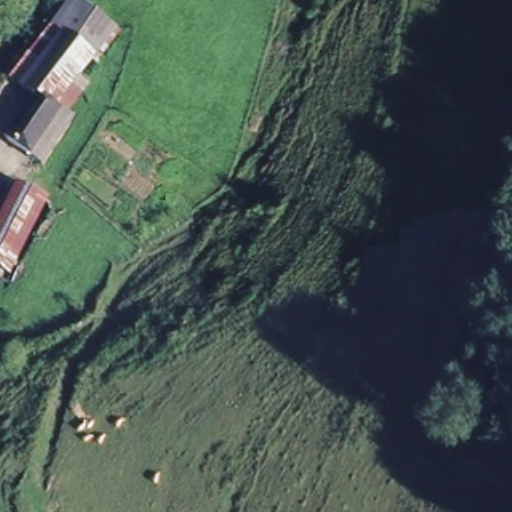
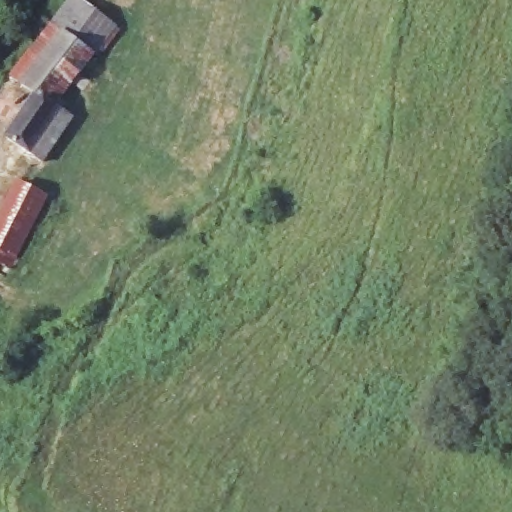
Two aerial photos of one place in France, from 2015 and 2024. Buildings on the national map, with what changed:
unchanged [(0,133),(29,95),(6,75),(72,0),(98,0),(90,12),(117,29),(57,100),(71,116),(42,159),(0,133)]
unchanged [(0,222),(22,188),(46,198),(9,262),(0,257),(0,222)]

